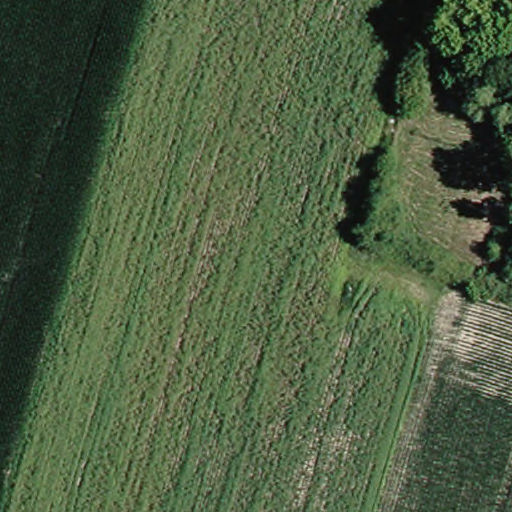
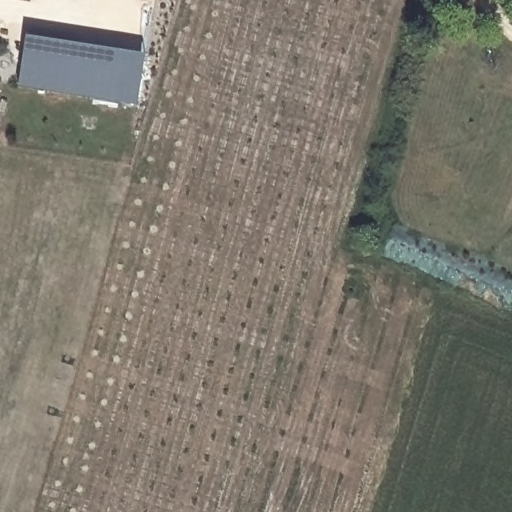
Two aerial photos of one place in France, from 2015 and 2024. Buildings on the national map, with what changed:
new [(123,52),(116,102),(17,86),(24,37),(123,52)]
new [(144,55),(136,105),(116,102),(123,52),(144,55)]
new [(467,70),(461,87),(442,78),(451,63),(467,70)]

